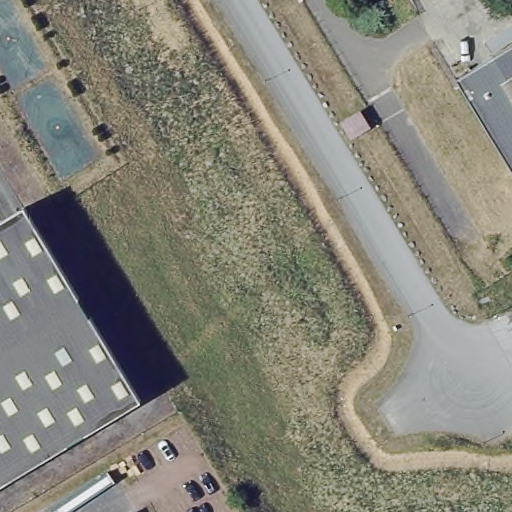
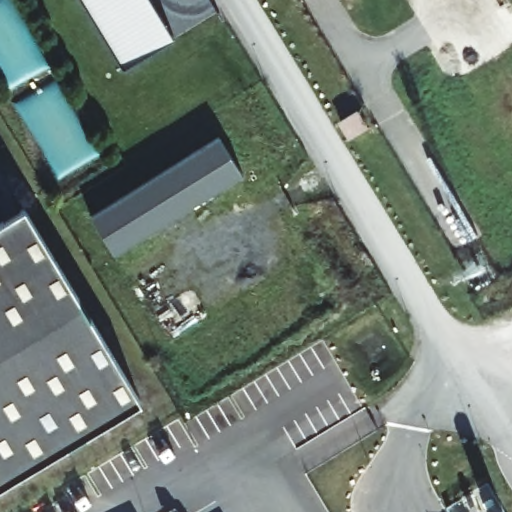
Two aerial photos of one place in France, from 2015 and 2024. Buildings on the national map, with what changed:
new [(117,68),(72,0),(142,0),(166,39),(117,68)]
demolished [(512,177),(454,81),(512,47),(512,177)]
unchanged [(373,128),(345,145),(331,128),(357,109),(373,128)]
new [(244,177),(115,257),(92,218),(220,138),(244,177)]
unchanged [(30,208),(143,403),(48,458),(0,378),(0,225),(30,208)]
unchanged [(48,458),(0,487),(0,378),(48,458)]

